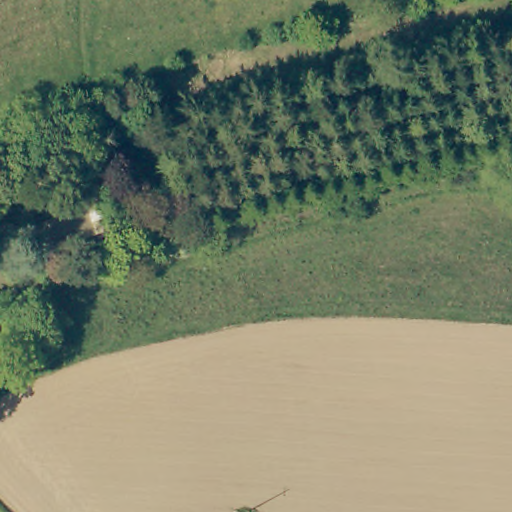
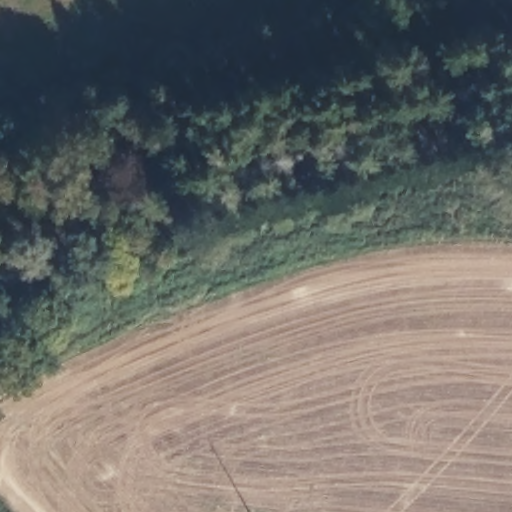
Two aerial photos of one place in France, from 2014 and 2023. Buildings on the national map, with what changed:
unchanged [(21,216),(28,214),(61,203),(71,233),(39,244),(32,247),(21,216)]

